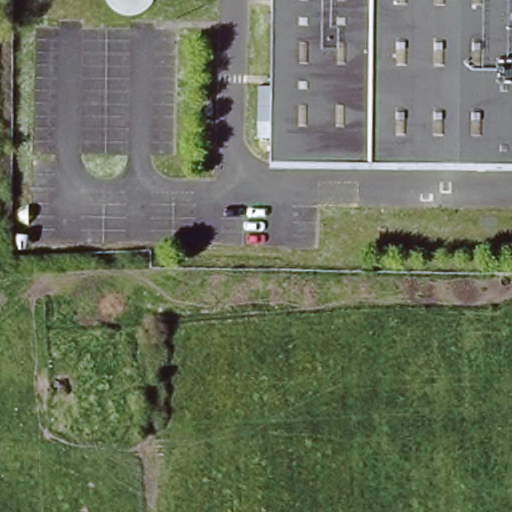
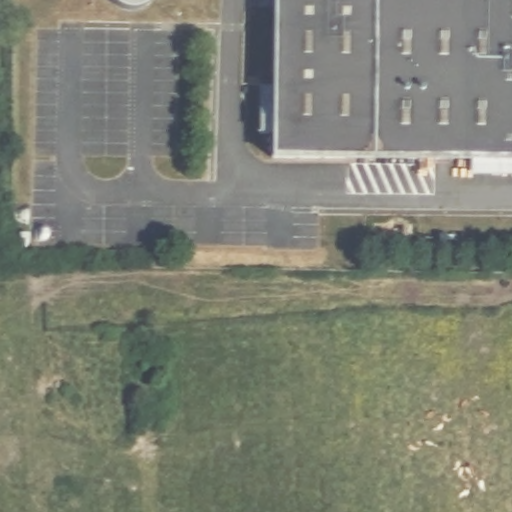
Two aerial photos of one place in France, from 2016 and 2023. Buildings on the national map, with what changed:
unchanged [(280,146),(280,0),(341,0),(331,146),(280,146)]
unchanged [(341,0),(512,0),(512,145),(331,146),(341,0)]

